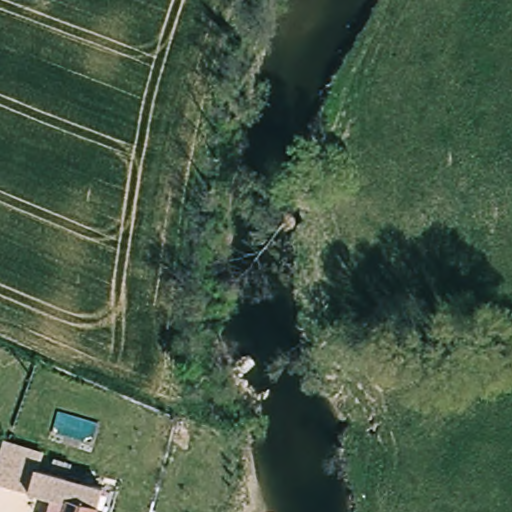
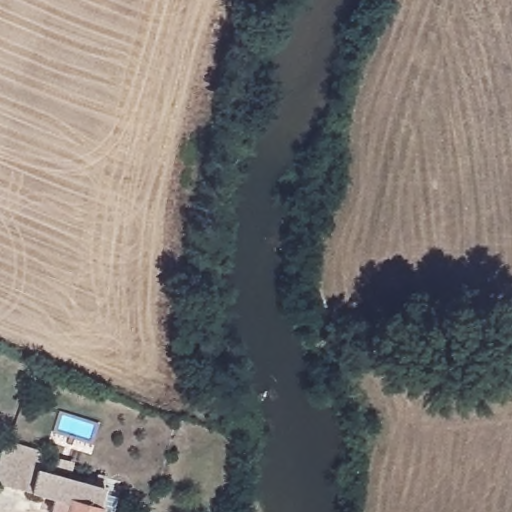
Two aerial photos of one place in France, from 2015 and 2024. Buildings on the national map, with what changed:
unchanged [(0,483),(0,451),(3,440),(41,451),(36,468),(103,487),(96,512),(48,512),(53,498),(0,483)]

